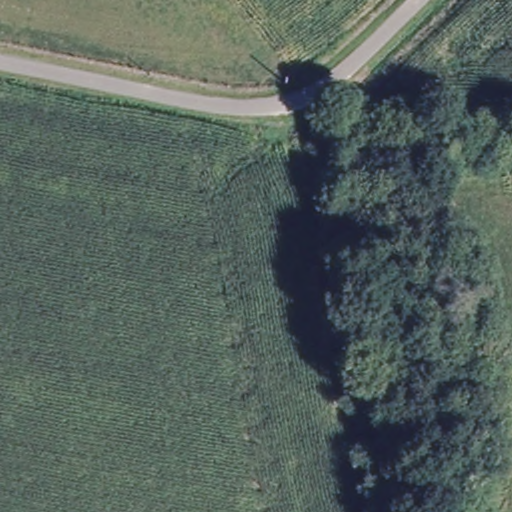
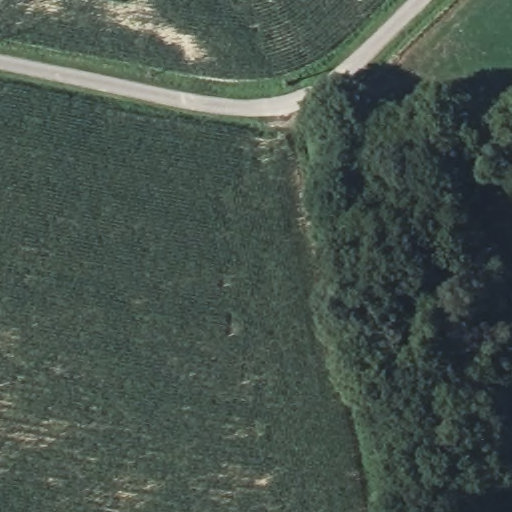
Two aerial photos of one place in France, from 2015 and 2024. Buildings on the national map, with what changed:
[]

